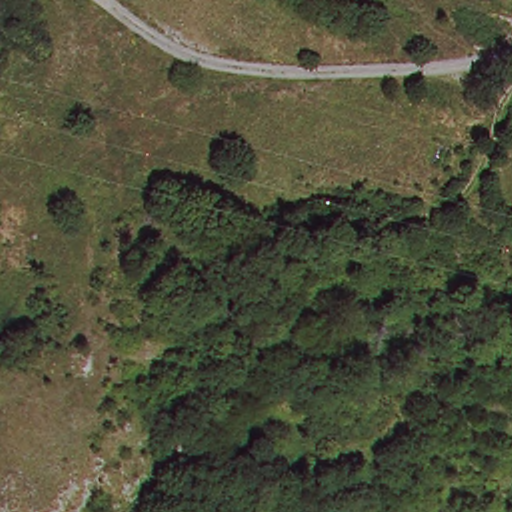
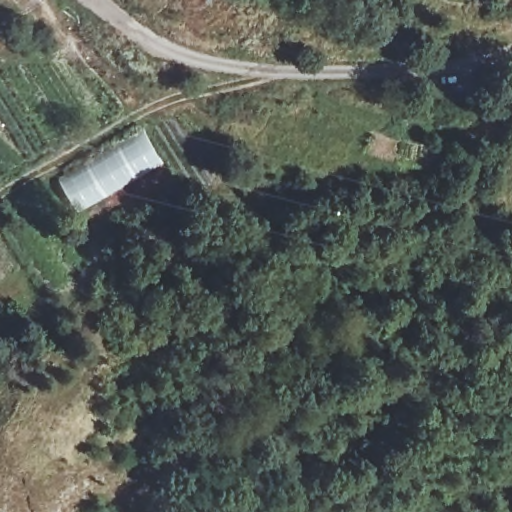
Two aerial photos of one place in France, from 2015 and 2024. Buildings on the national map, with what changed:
new [(143,129),(164,165),(78,213),(59,178),(143,129)]

